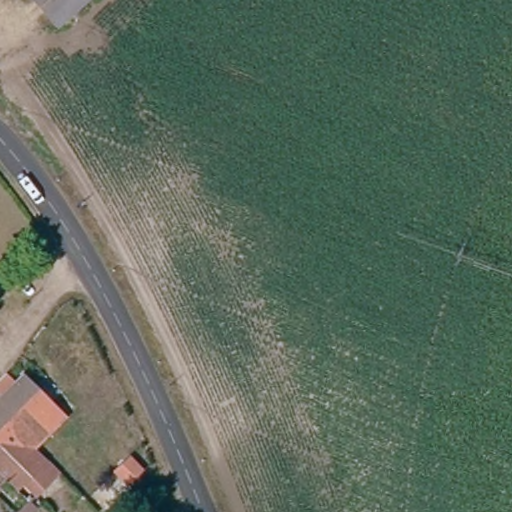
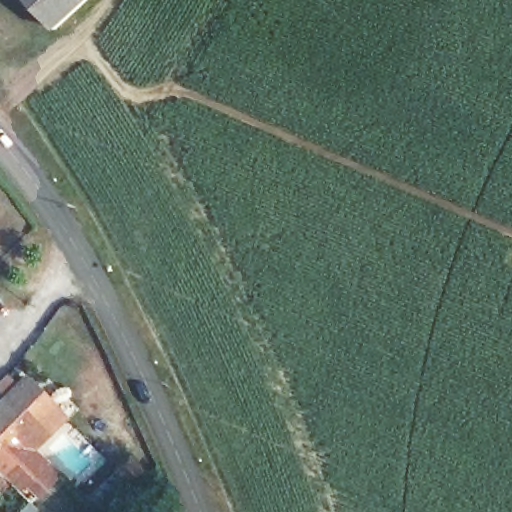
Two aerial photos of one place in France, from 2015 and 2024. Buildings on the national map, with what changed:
unchanged [(29,0),(82,0),(50,26),(29,0)]
unchanged [(0,485),(0,398),(4,395),(51,435),(39,450),(63,473),(34,502),(6,478),(0,485)]
unchanged [(42,512),(23,512),(34,502),(42,512)]

